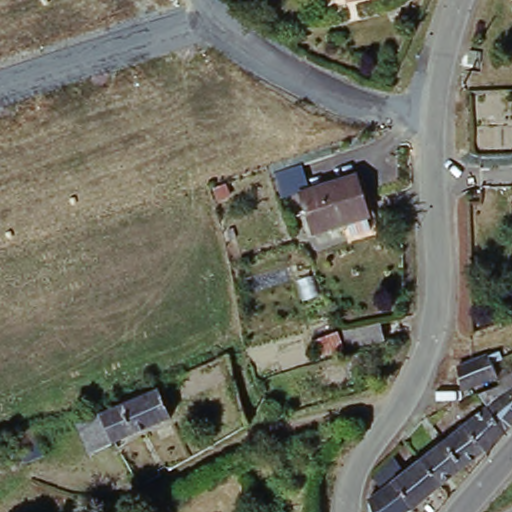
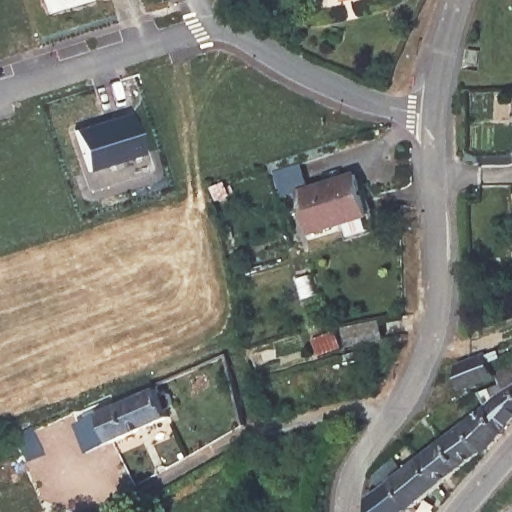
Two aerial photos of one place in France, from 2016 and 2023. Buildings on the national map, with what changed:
new [(71,0),(73,0),(71,1),(71,0)]
new [(142,155),(89,171),(76,129),(130,112),(142,155)]
unchanged [(355,177),(368,216),(344,225),(314,236),(300,196),(355,177)]
unchanged [(225,187),(227,200),(214,202),(212,189),(225,187)]
unchanged [(323,273),(331,293),(316,298),(311,300),(304,280),(310,277),(323,273)]
unchanged [(354,325),(389,319),(392,338),(357,343),(354,325)]
unchanged [(472,363),(491,356),(495,365),(500,377),(466,391),(456,369),(470,363),(472,363)]
unchanged [(448,442),(468,427),(491,411),(480,398),(504,386),(501,378),(512,371),(512,432),(510,435),(502,444),(491,456),(487,451),(467,467),(443,487),(423,461),(448,442)]
unchanged [(166,397),(172,410),(163,413),(165,418),(99,447),(84,453),(71,425),(115,404),(111,396),(148,380),(150,386),(151,387),(157,402),(166,397)]
unchanged [(31,427),(42,455),(24,462),(14,436),(31,427)]
unchanged [(400,460),(408,472),(419,463),(423,461),(443,487),(432,496),(414,511),(413,512),(371,512),(370,501),(392,483),(385,472),(400,460)]

